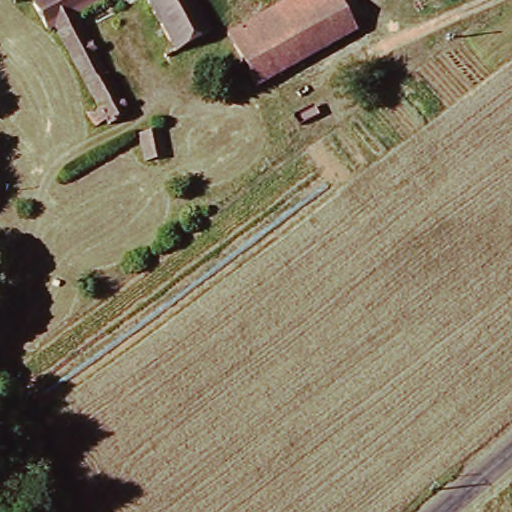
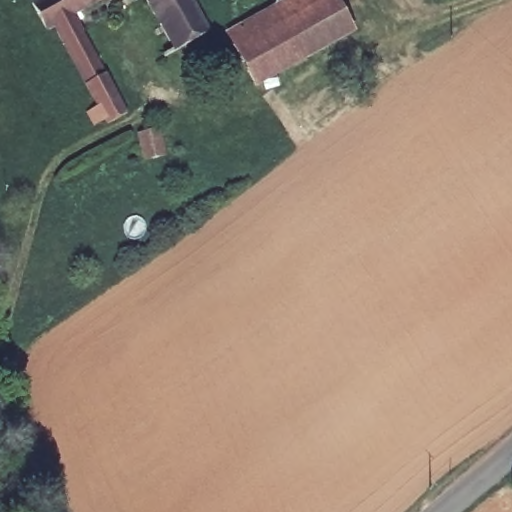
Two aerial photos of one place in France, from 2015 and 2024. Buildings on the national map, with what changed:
unchanged [(129,109),(115,118),(97,120),(93,111),(102,104),(41,0),(100,0),(75,14),(129,109)]
unchanged [(190,41),(197,59),(177,68),(170,55),(175,50),(148,0),(198,0),(213,29),(190,41)]
unchanged [(336,0),(354,30),(304,59),(274,8),(288,0),(336,0)]
unchanged [(225,35),(237,30),(274,8),(304,59),(252,86),(225,35)]
unchanged [(160,131),(164,156),(146,161),(139,134),(160,131)]

